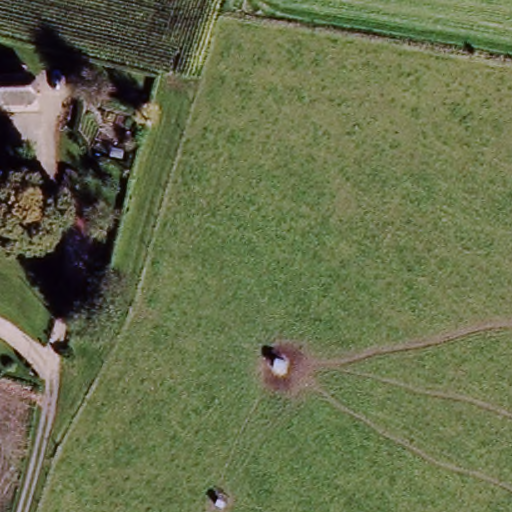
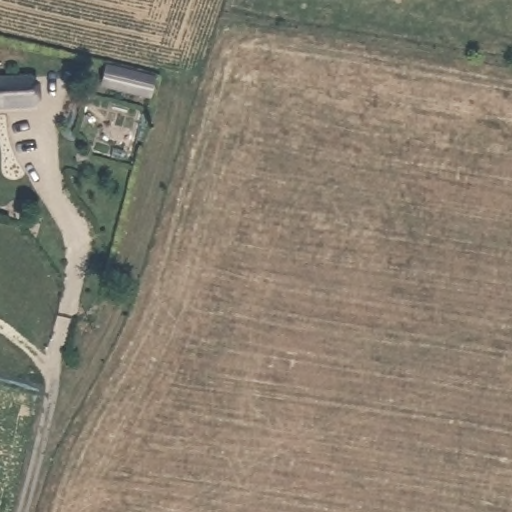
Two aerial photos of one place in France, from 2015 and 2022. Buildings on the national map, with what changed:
unchanged [(31,107),(0,108),(0,80),(30,79),(31,107)]

